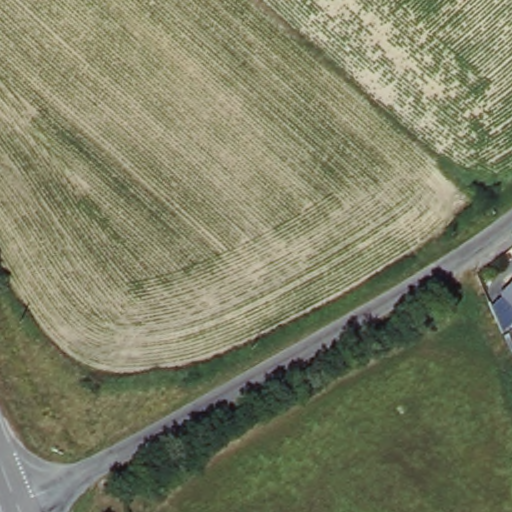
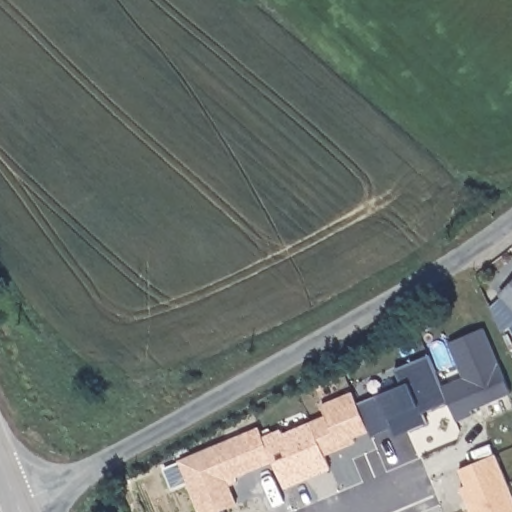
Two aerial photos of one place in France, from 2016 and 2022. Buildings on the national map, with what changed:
unchanged [(502,299),(512,290),(512,310),(502,299)]
new [(512,392),(474,406),(477,412),(458,419),(450,401),(422,413),(427,423),(395,436),(392,430),(372,437),(370,432),(355,437),(357,442),(323,454),(330,469),(285,488),(264,438),(276,433),(282,434),(311,424),(330,418),(326,406),(355,394),(362,382),(395,368),(431,354),(443,385),(463,378),(449,341),(484,327),(512,392)]
new [(260,467),(235,478),(237,482),(230,486),(237,504),(215,512),(201,512),(190,482),(173,488),(164,468),(246,434),(260,467)]
new [(461,488),(467,485),(460,469),(496,453),(512,493),(512,512),(471,512),(461,488)]

